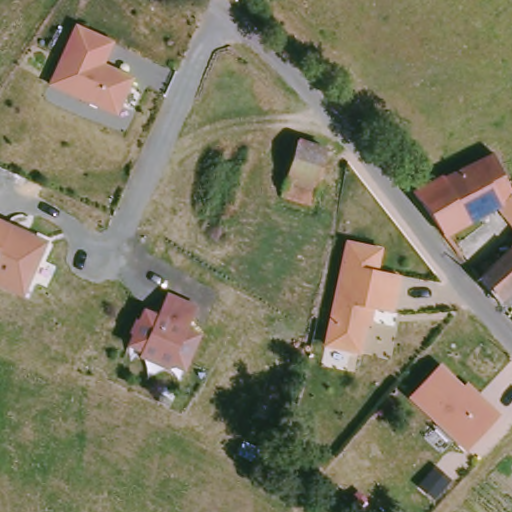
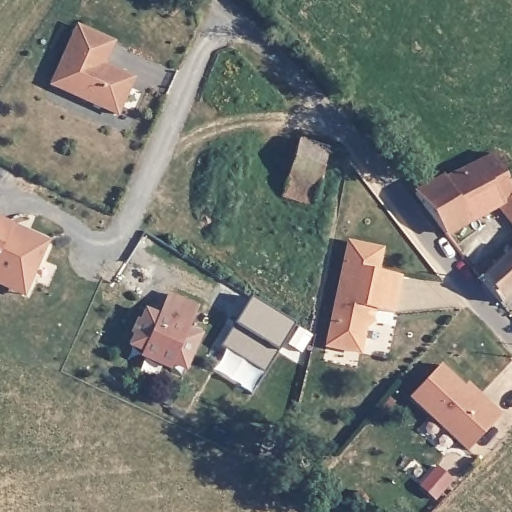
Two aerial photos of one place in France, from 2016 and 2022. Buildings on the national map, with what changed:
unchanged [(117,114),(52,84),(79,26),(110,40),(101,62),(134,77),(117,114)]
unchanged [(328,149),(313,201),(285,194),(301,139),(328,149)]
unchanged [(512,184),(512,217),(502,205),(450,233),(417,189),(498,150),(512,184)]
unchanged [(0,284),(0,220),(47,241),(27,282),(22,294),(0,284)]
unchanged [(362,355),(330,348),(352,244),(385,251),(380,272),(402,276),(395,315),(377,311),(374,323),(369,322),(362,355)]
unchanged [(512,294),(504,301),(484,276),(512,251),(512,294)]
unchanged [(186,328),(200,335),(186,364),(172,358),(168,368),(140,355),(142,350),(128,345),(133,333),(132,333),(137,320),(140,321),(145,310),(158,315),(168,293),(197,306),(186,328)]
new [(235,323),(250,297),(296,324),(279,351),(265,373),(221,346),(235,323)]
unchanged [(465,452),(407,400),(437,367),(460,389),(464,385),(482,402),(497,416),(465,452)]

